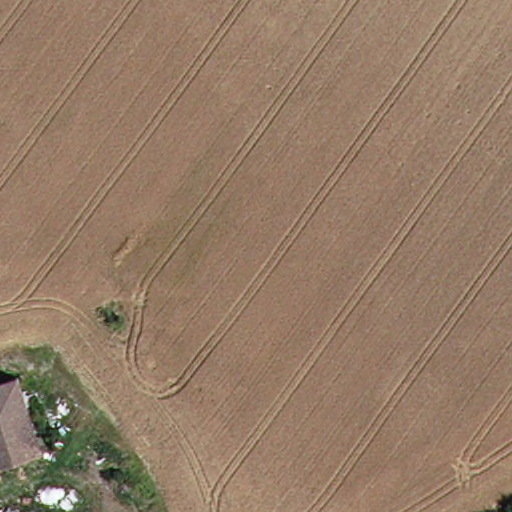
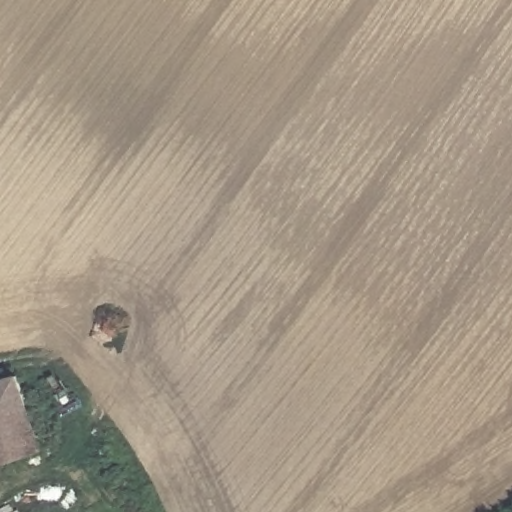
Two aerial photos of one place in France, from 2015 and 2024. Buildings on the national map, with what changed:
unchanged [(12,378),(41,453),(0,469),(0,382),(12,378)]

